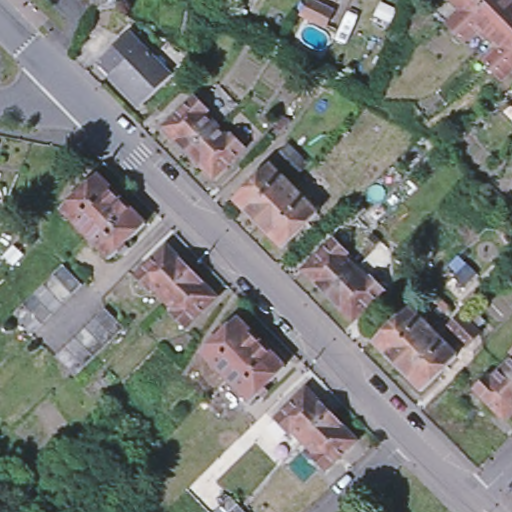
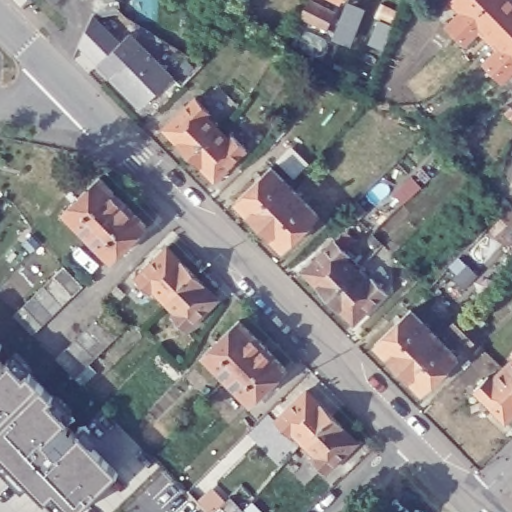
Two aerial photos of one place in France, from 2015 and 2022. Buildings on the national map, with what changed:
unchanged [(79,1),(79,0),(85,0),(79,1)]
unchanged [(118,7),(91,11),(89,0),(118,0),(118,7)]
unchanged [(293,11),(270,0),(298,0),(293,11)]
unchanged [(336,11),(328,27),(304,16),(311,0),(336,11)]
unchanged [(501,80),(483,63),(498,48),(479,28),(464,43),(447,26),(462,10),(452,0),(453,0),(512,0),(512,69),(501,80)]
unchanged [(141,110),(111,79),(98,65),(129,36),(143,49),(173,80),(141,110)]
unchanged [(190,156),(163,128),(196,96),(209,111),(205,115),(218,128),(190,156)]
unchanged [(218,128),(228,139),(233,135),(246,148),(213,180),(190,156),(218,128)]
unchanged [(271,166),(316,213),(281,248),(234,201),(271,166)]
unchanged [(98,177),(144,226),(109,261),(62,212),(98,177)]
unchanged [(302,270),(334,239),(348,252),(343,257),(354,268),(356,270),(329,298),(302,270)]
unchanged [(153,288),(148,293),(134,278),(166,246),(192,273),(164,300),(153,288)]
unchanged [(22,304),(31,295),(41,285),(52,275),(61,265),(80,285),(70,295),(60,304),(49,314),(40,323),(30,333),(12,314),(22,304)]
unchanged [(356,270),(366,280),(369,276),(384,290),(351,321),(329,298),(356,270)]
unchanged [(192,273),(193,274),(216,297),(184,329),(171,315),(176,311),(166,301),(164,300),(192,273)]
unchanged [(409,308),(456,356),(419,391),(373,343),(409,308)]
unchanged [(64,347),(73,338),(83,328),(93,318),(103,309),(123,328),(112,338),(103,348),(93,357),(83,366),(73,376),(54,357),(64,347)]
unchanged [(479,333),(466,346),(447,325),(459,312),(469,322),(479,333)]
unchanged [(238,320),(284,367),(248,402),(203,354),(238,320)]
unchanged [(503,370),(512,361),(512,380),(503,370)]
new [(25,382),(48,406),(43,411),(113,480),(82,512),(61,512),(50,500),(43,507),(0,462),(0,365),(19,386),(25,382)]
unchanged [(504,421),(474,391),(488,377),(492,381),(503,370),(512,380),(512,414),(504,421)]
unchanged [(306,388),(331,415),(303,442),(303,441),(291,429),(286,433),(273,420),(306,388)]
unchanged [(356,440),(324,471),(309,457),(314,453),(303,442),(331,415),(356,440)]
unchanged [(231,497),(243,510),(245,512),(215,512),(221,505),(231,497)]

